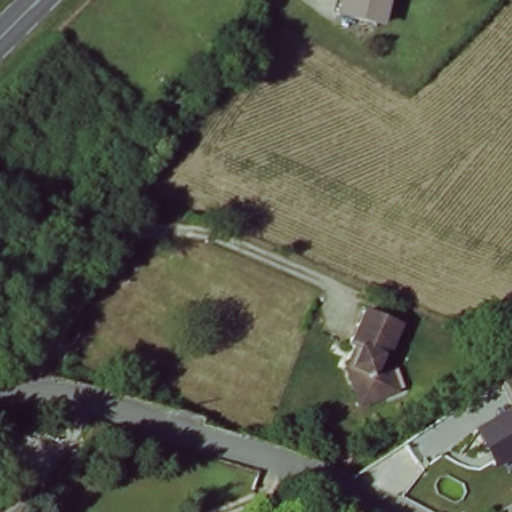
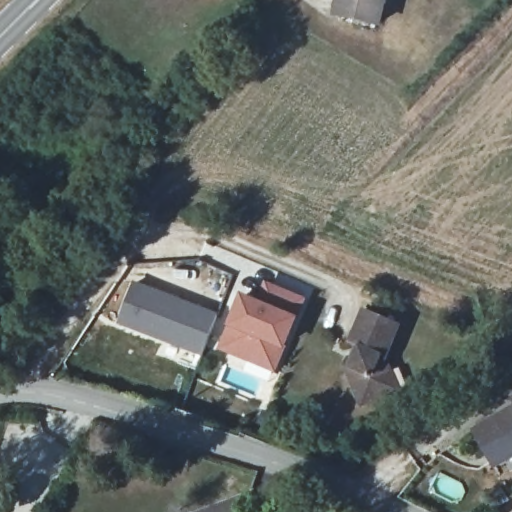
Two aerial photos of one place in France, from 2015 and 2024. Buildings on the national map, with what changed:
unchanged [(379,29),(334,20),(339,0),(386,0),(379,29)]
new [(306,295),(277,373),(216,349),(239,288),(259,294),(266,278),(306,295)]
new [(217,311),(202,355),(118,322),(133,280),(217,311)]
unchanged [(393,394),(367,404),(353,367),(358,366),(367,347),(356,343),(371,309),(404,324),(389,357),(396,372),(403,391),(393,394)]
unchanged [(472,434),(484,427),(512,411),(512,456),(503,461),(491,468),(472,434)]

